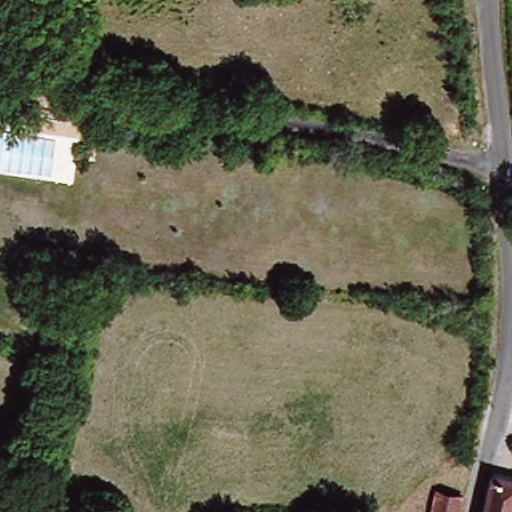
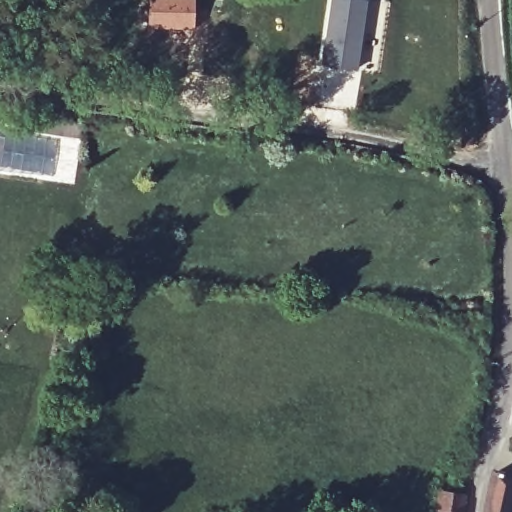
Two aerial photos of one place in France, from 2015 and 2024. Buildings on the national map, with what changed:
new [(147,0),(194,0),(193,30),(147,27),(147,0)]
new [(328,0),(368,0),(358,71),(318,65),(328,0)]
new [(4,174),(0,165),(0,132),(45,138),(53,160),(52,170),(4,174)]
unchanged [(448,504),(447,512),(429,512),(430,504),(448,504)]
unchanged [(510,512),(512,507),(512,512),(510,512)]

